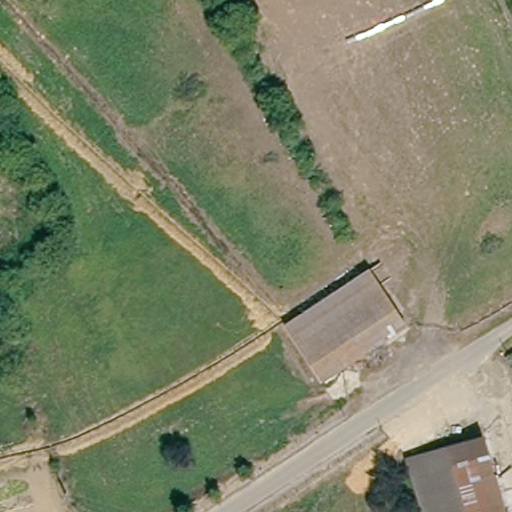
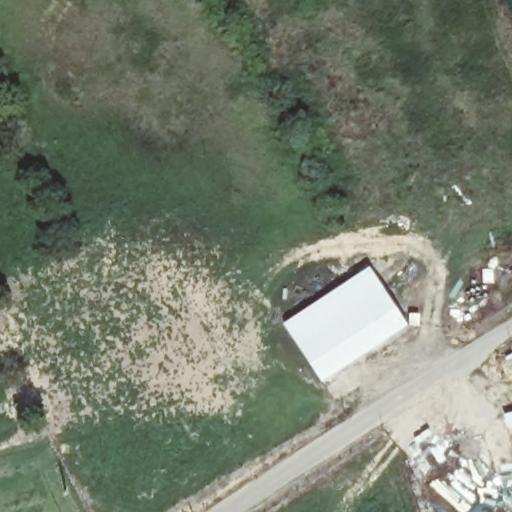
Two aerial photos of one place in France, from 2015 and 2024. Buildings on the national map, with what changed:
unchanged [(399,320),(315,376),(285,330),(369,275),(399,320)]
demolished [(508,512),(416,512),(403,458),(482,435),(508,512)]

